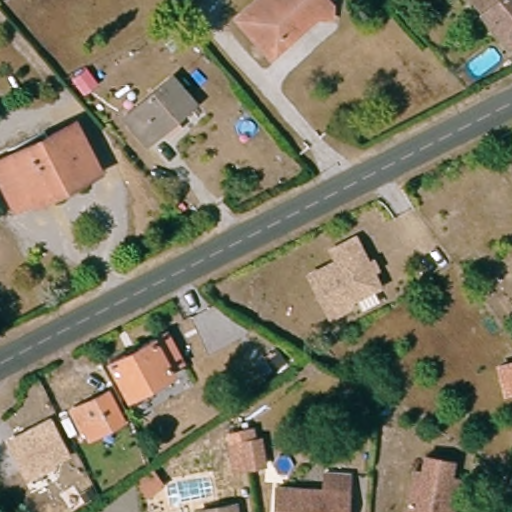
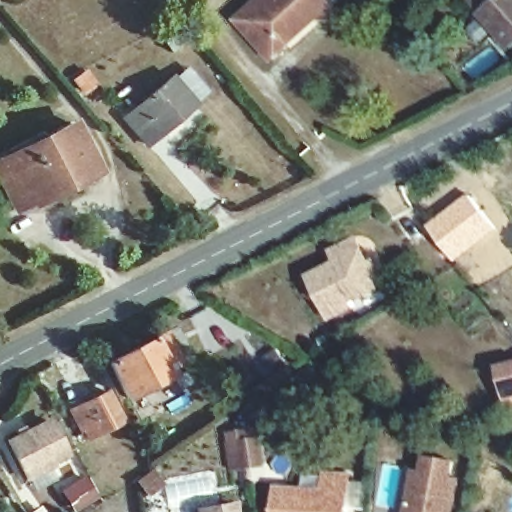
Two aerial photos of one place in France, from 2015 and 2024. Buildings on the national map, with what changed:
unchanged [(273,59),(238,20),(260,0),(330,0),(335,5),(334,20),(320,19),(273,59)]
unchanged [(484,10),(487,8),(479,0),(512,0),(512,42),(484,10)]
unchanged [(0,2),(1,3),(0,3),(0,2)]
unchanged [(174,49),(161,31),(178,21),(190,36),(174,49)]
unchanged [(98,80),(88,88),(78,75),(88,67),(98,80)]
unchanged [(150,151),(126,125),(174,83),(198,110),(150,151)]
unchanged [(36,204),(35,201),(21,209),(0,169),(0,165),(75,127),(98,174),(36,204)]
new [(467,192),(497,229),(455,261),(427,225),(467,192)]
unchanged [(349,303),(350,307),(328,319),(306,276),(333,262),(328,250),(353,239),(366,264),(371,261),(375,270),(371,272),(379,287),(349,303)]
unchanged [(175,375),(131,400),(111,363),(168,335),(183,362),(171,368),(175,375)]
unchanged [(79,428),(68,407),(105,388),(121,417),(87,435),(83,436),(79,428)]
unchanged [(70,451),(55,460),(56,462),(30,475),(11,436),(51,415),(70,451)]
unchanged [(263,440),(267,465),(248,468),(236,470),(232,444),(244,442),(263,440)]
unchanged [(408,512),(416,471),(424,473),(427,457),(455,463),(453,478),(459,480),(454,512),(408,512)]
unchanged [(278,512),(280,488),(325,491),(327,473),(351,475),(348,512),(278,512)]
unchanged [(226,512),(237,510),(237,512),(226,512)]

